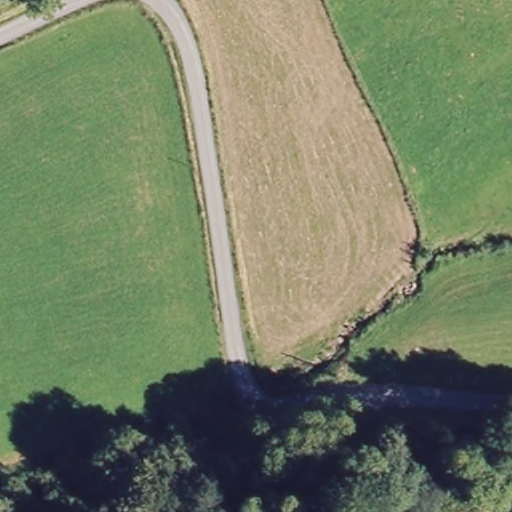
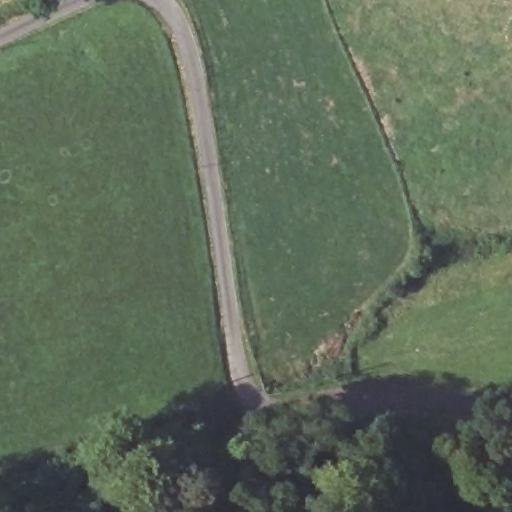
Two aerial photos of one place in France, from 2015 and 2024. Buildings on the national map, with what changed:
[]

